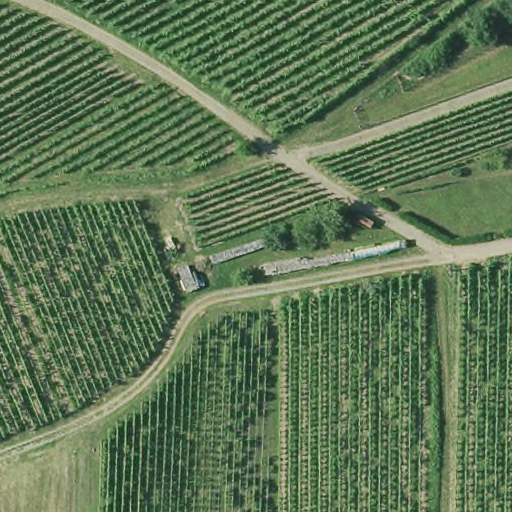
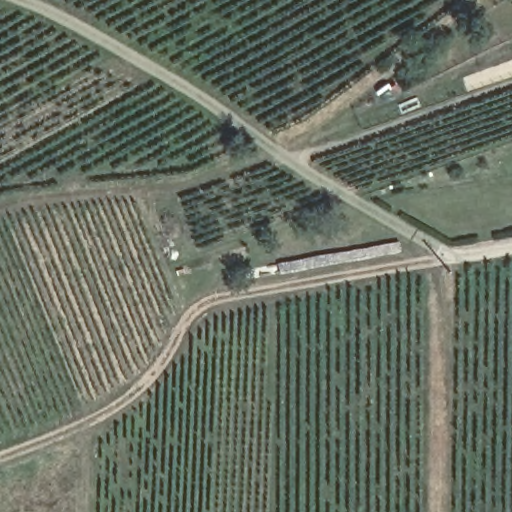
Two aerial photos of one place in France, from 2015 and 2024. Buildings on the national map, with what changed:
[]

